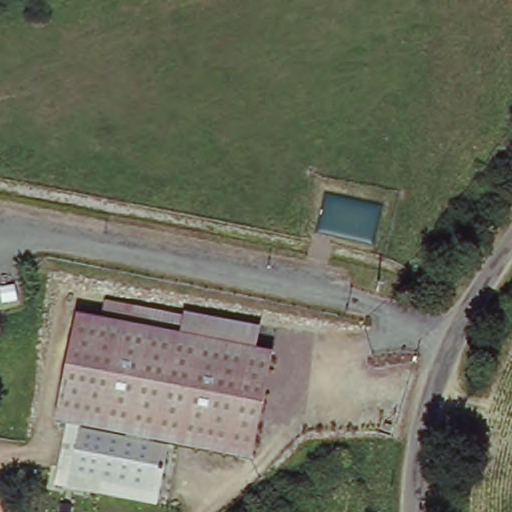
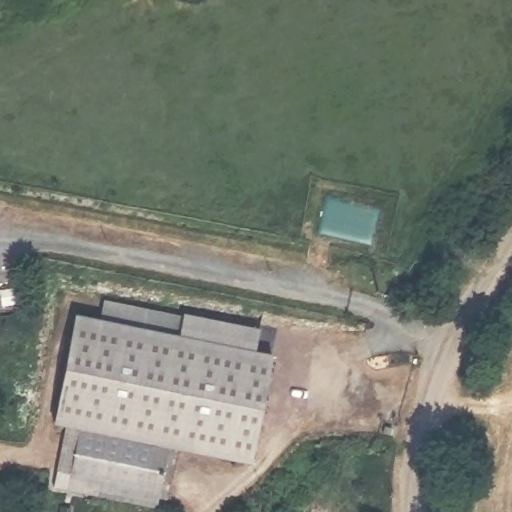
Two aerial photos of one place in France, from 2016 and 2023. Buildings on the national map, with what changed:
unchanged [(250,465),(171,450),(161,495),(88,480),(84,497),(52,490),(57,471),(66,430),(53,427),(75,314),(100,319),(105,298),(171,312),(166,332),(179,334),(184,314),(260,330),(256,350),(272,353),(250,465)]

